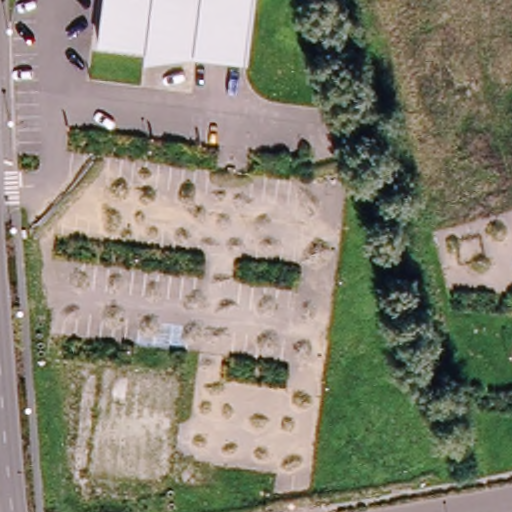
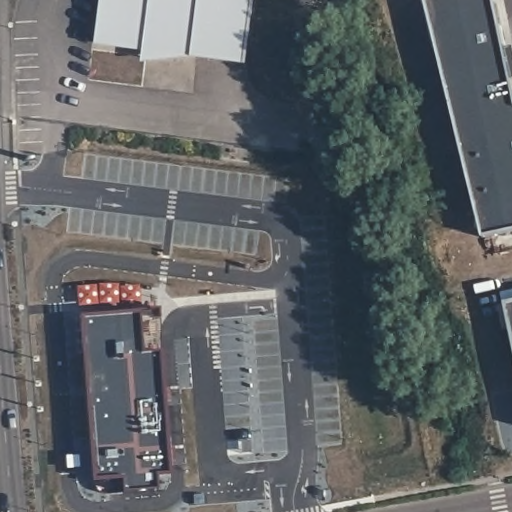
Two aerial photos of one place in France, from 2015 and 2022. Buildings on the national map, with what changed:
unchanged [(102,0),(248,0),(247,7),(247,11),(242,55),(241,60),(96,42),(97,40),(102,0)]
new [(512,233),(484,239),(434,0),(496,0),(512,79),(512,233)]
new [(512,302),(512,334),(505,303),(512,302)]
new [(138,312),(141,352),(159,351),(169,474),(156,475),(157,490),(122,493),(120,478),(92,480),(80,317),(138,312)]
demolished [(87,470),(85,470),(99,360),(182,370),(172,456),(170,479),(87,470)]

